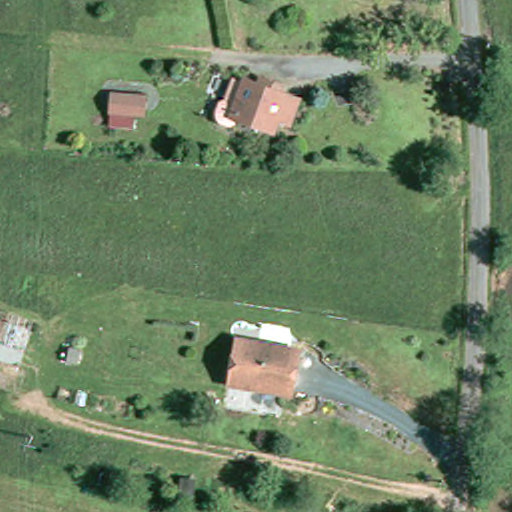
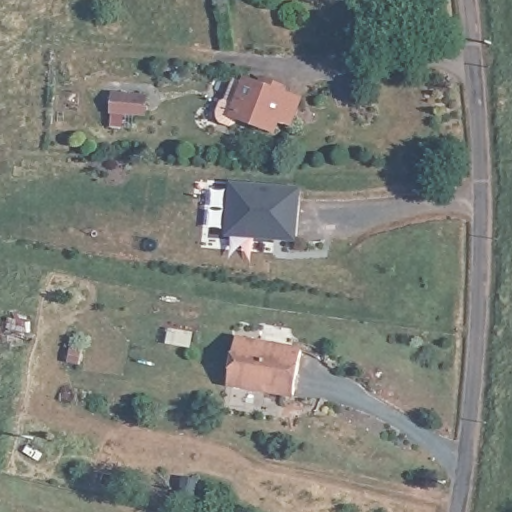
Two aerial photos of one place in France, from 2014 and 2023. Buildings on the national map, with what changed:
unchanged [(296,129),(281,124),(277,134),(245,122),(242,131),(239,130),(237,134),(226,131),(220,119),(224,107),(231,105),(239,82),(264,90),(266,84),(287,90),(286,99),(289,100),(305,105),(296,129)]
unchanged [(142,123),(133,122),(111,120),(112,101),(135,104),(145,105),(142,123)]
new [(302,186),(297,241),(227,236),(231,180),(302,186)]
unchanged [(299,350),(291,394),(231,384),(238,339),(299,350)]

